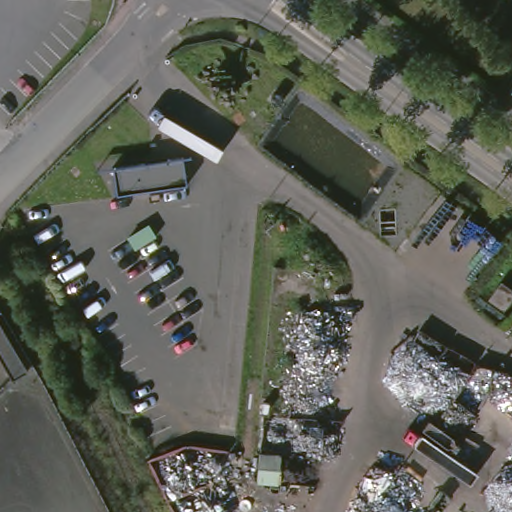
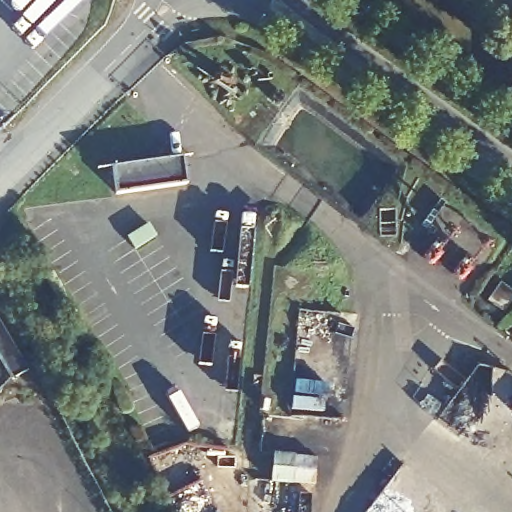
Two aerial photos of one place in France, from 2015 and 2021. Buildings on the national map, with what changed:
unchanged [(511,88),(512,86),(512,89),(511,88)]
unchanged [(202,183),(122,194),(119,166),(198,156),(202,183)]
unchanged [(512,295),(512,301),(504,312),(490,302),(501,286),(512,295)]
unchanged [(17,374),(0,345),(0,313),(30,366),(17,374)]
unchanged [(320,484),(279,480),(282,452),(323,456),(320,484)]

